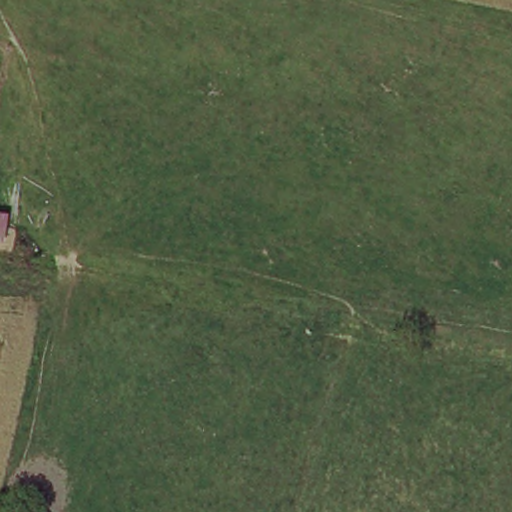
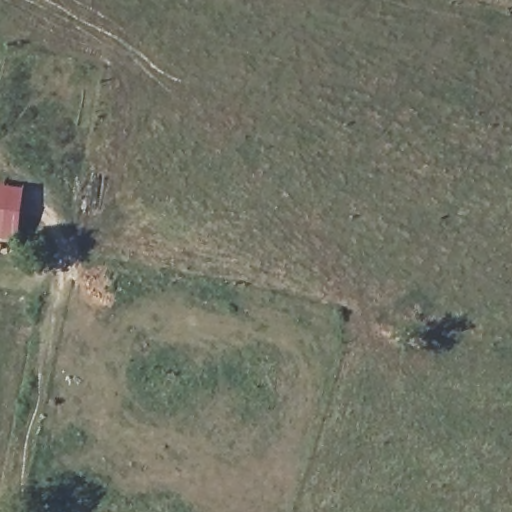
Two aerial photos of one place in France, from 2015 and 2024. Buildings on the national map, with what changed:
new [(25,186),(17,242),(0,239),(0,182),(25,186)]

